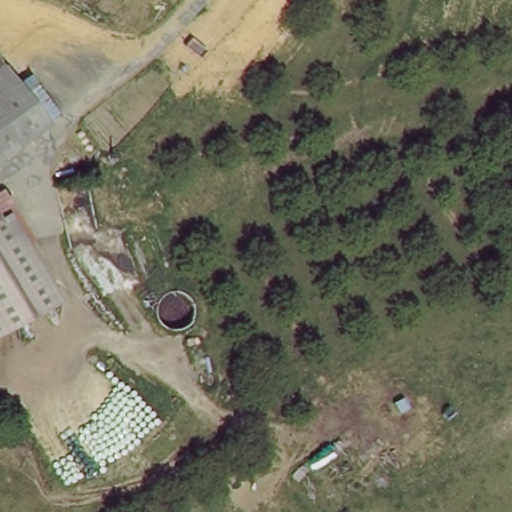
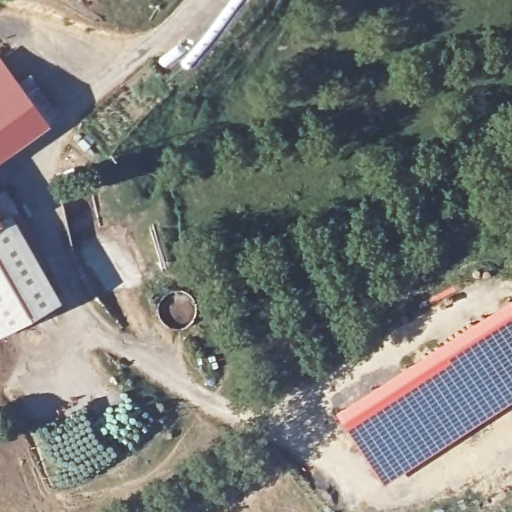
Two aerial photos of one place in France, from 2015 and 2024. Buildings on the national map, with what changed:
unchanged [(5,64),(49,125),(0,156),(0,67),(5,64)]
unchanged [(4,185),(16,207),(7,212),(54,298),(0,328),(0,188),(4,185)]
new [(334,411),(508,297),(512,303),(512,399),(382,484),(334,411)]

